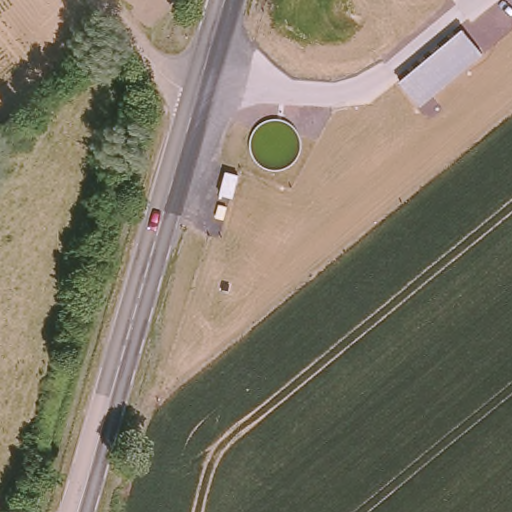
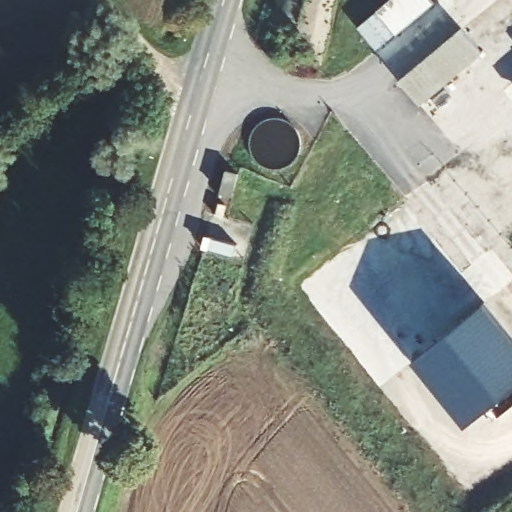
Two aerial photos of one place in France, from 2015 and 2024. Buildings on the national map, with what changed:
new [(435,4),(378,51),(358,28),(390,0),(432,0),(435,4)]
unchanged [(483,55),(419,106),(401,80),(463,28),(483,55)]
new [(487,301),(512,332),(512,389),(466,426),(413,360),(487,301)]

